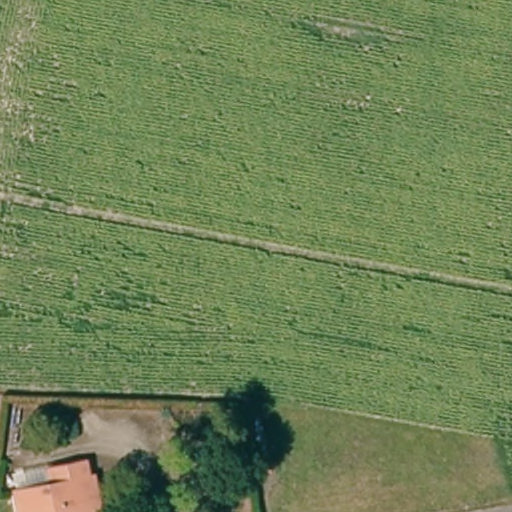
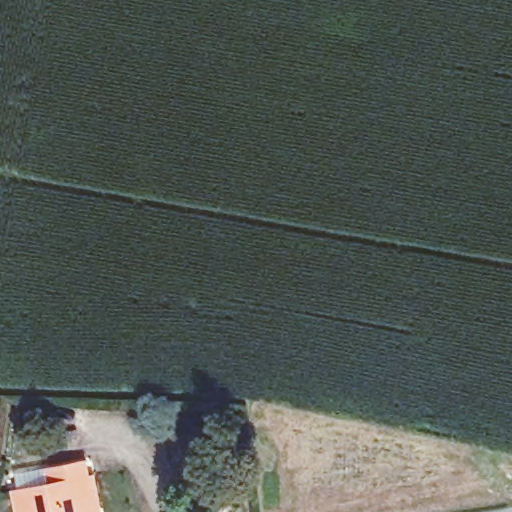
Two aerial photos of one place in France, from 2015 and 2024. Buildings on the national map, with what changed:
unchanged [(21,491),(52,483),(51,471),(90,462),(93,477),(101,512),(25,512),(21,491)]

